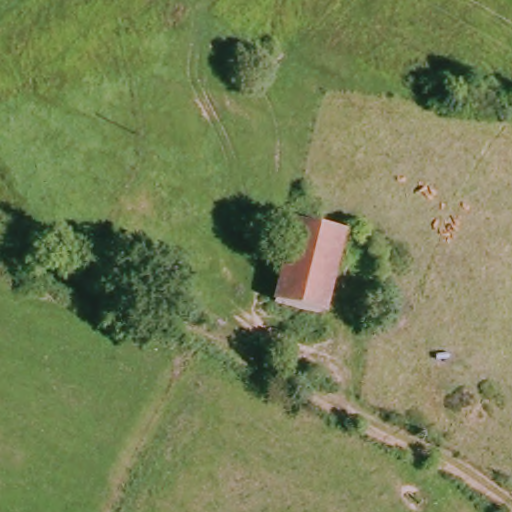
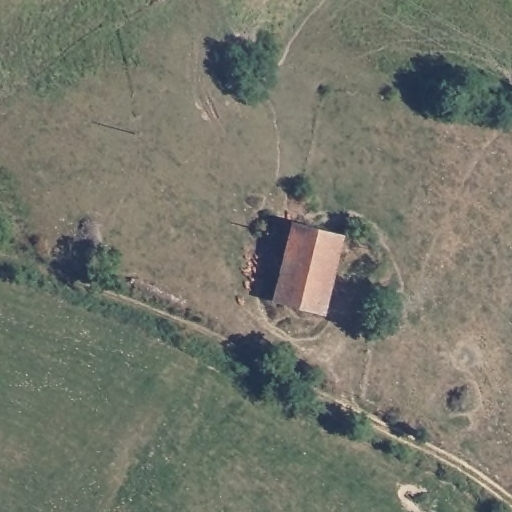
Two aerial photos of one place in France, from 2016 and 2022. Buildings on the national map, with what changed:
unchanged [(301,222),(347,234),(329,320),(284,307),(301,222)]

